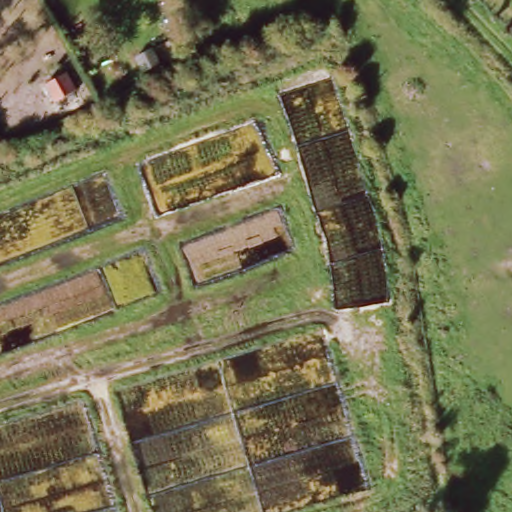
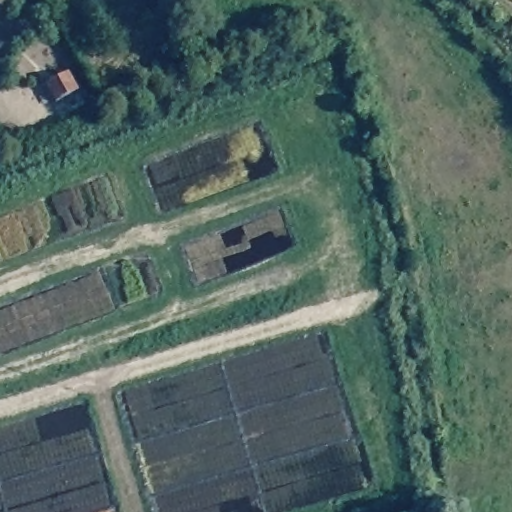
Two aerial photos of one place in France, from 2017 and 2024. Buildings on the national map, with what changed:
unchanged [(138,37),(144,51),(127,58),(121,44),(138,37)]
unchanged [(58,78),(67,95),(43,108),(33,92),(58,78)]

